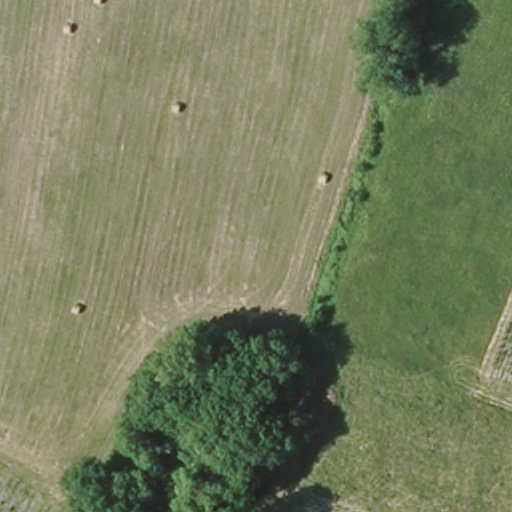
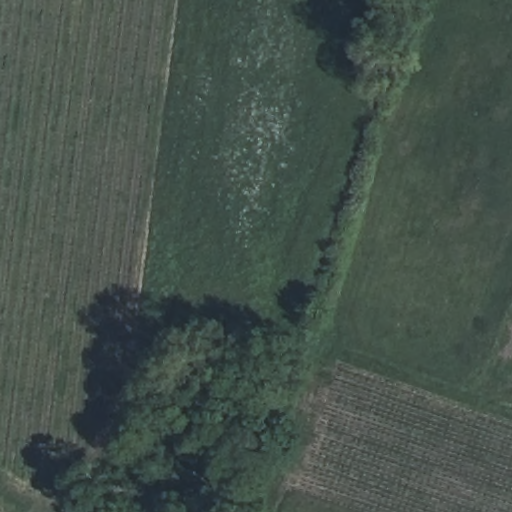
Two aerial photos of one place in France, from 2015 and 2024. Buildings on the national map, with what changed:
[]

